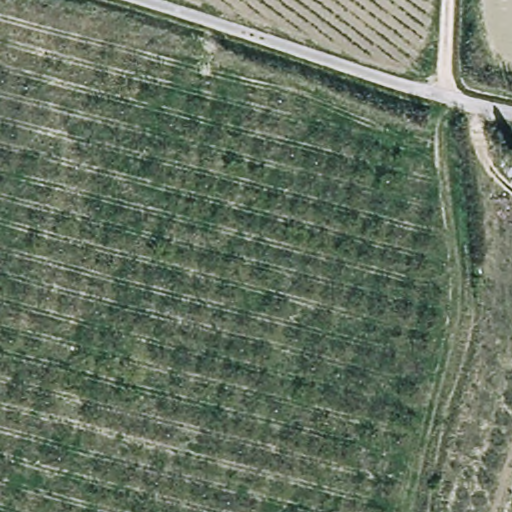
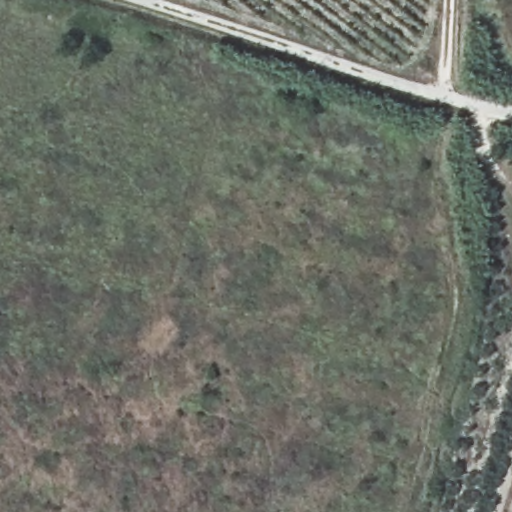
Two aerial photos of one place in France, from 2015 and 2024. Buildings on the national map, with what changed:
[]

